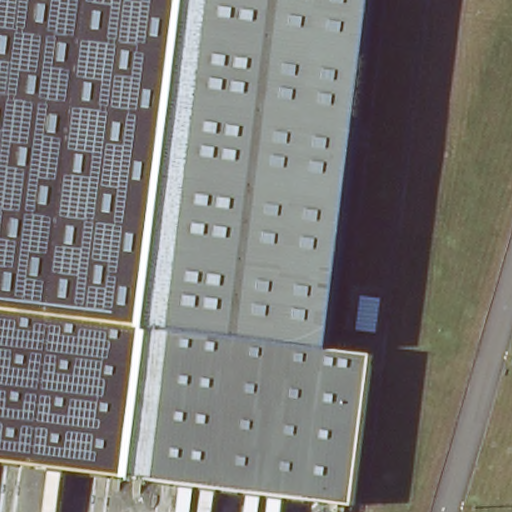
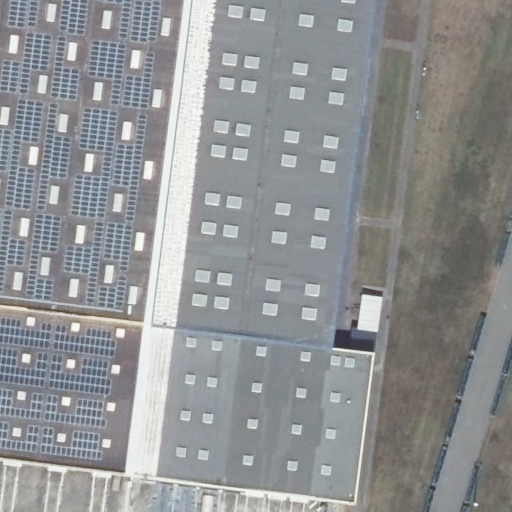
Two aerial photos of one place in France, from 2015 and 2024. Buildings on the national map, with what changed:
unchanged [(0,0),(267,0),(206,487),(0,461),(0,0)]
unchanged [(326,348),(368,354),(349,505),(206,487),(260,55),(267,0),(369,0),(326,348)]

